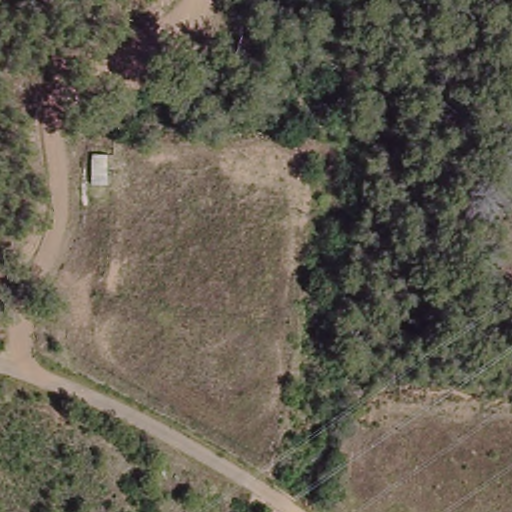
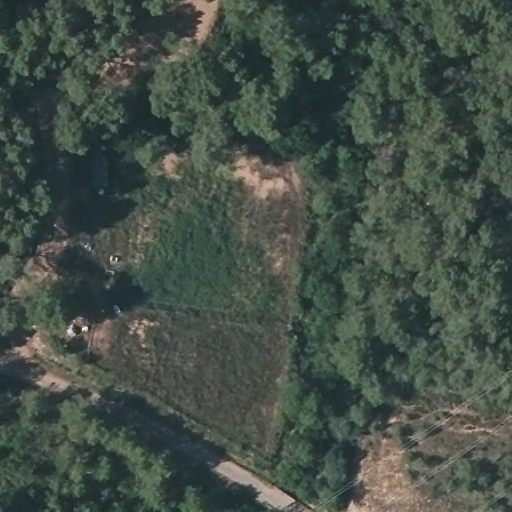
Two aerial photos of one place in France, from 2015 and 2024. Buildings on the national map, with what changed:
unchanged [(92,154),(107,154),(108,184),(92,184),(92,154)]

